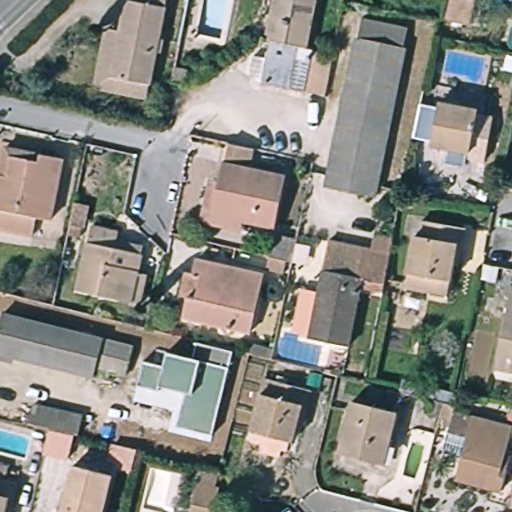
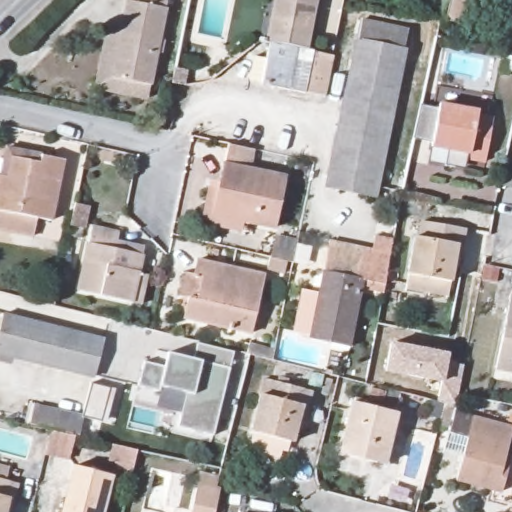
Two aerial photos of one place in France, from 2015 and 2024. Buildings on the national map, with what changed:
unchanged [(146,91),(107,86),(123,10),(132,10),(135,0),(152,0),(165,1),(146,91)]
unchanged [(263,77),(270,38),(265,36),(272,0),(313,0),(305,43),(312,45),(332,50),(324,89),(306,85),(263,77)]
unchanged [(473,11),(468,34),(468,35),(448,31),(453,7),(473,11)]
unchanged [(360,15),(414,26),(410,46),(356,37),(360,15)]
unchanged [(410,46),(382,197),(366,195),(362,217),(321,208),(356,37),(410,46)]
unchanged [(479,105),(479,112),(494,115),(482,160),(467,159),(469,149),(436,144),(444,99),(479,105)]
unchanged [(247,166),(285,173),(275,224),(213,212),(228,137),(251,141),(247,166)]
unchanged [(9,154),(33,157),(35,150),(62,157),(48,217),(32,214),(27,228),(0,222),(0,172),(5,173),(9,154)]
unchanged [(461,245),(453,243),(443,295),(402,287),(412,235),(419,236),(422,221),(463,229),(461,245)]
unchanged [(143,303),(133,301),(80,288),(95,226),(124,234),(121,246),(144,254),(141,270),(151,272),(143,303)]
unchanged [(349,342),(309,335),(323,264),(328,237),(361,244),(373,245),(378,232),(396,236),(388,280),(366,275),(349,342)]
unchanged [(286,270),(268,267),(269,255),(287,259),(286,270)]
unchanged [(262,275),(251,335),(180,321),(186,295),(191,275),(195,260),(262,275)]
unchanged [(309,335),(294,331),(301,290),(317,295),(309,335)]
unchanged [(512,293),(512,371),(495,367),(512,293)]
unchanged [(0,327),(5,314),(95,337),(131,346),(122,377),(94,371),(0,351),(0,327)]
unchanged [(234,351),(214,437),(178,427),(187,395),(161,387),(160,391),(140,386),(143,362),(165,367),(169,354),(194,357),(197,342),(234,351)]
new [(449,353),(447,363),(465,365),(455,407),(452,407),(436,403),(442,382),(384,372),(389,342),(449,353)]
unchanged [(310,388),(305,406),(300,404),(288,443),(248,433),(258,395),(266,396),(272,378),(310,388)]
unchanged [(396,393),(452,407),(450,417),(441,416),(393,404),(396,393)]
unchanged [(396,410),(384,465),(341,451),(353,401),(396,410)]
unchanged [(80,415),(75,431),(31,420),(36,405),(80,415)]
unchanged [(75,431),(68,458),(45,455),(53,425),(75,431)]
unchanged [(499,478),(507,480),(502,502),(453,490),(462,448),(444,445),(448,425),(508,438),(499,478)]
unchanged [(288,443),(285,453),(282,452),(280,457),(259,452),(261,445),(252,441),(255,435),(288,443)]
unchanged [(138,451),(133,473),(107,467),(112,443),(138,451)]
unchanged [(10,458),(21,461),(13,506),(6,505),(4,512),(0,512),(0,449),(10,450),(10,458)]
unchanged [(110,475),(102,512),(62,512),(71,465),(110,475)]
unchanged [(221,475),(215,512),(191,512),(200,472),(221,475)]

